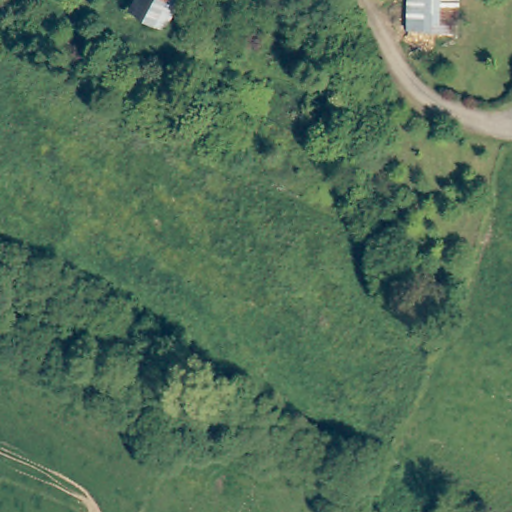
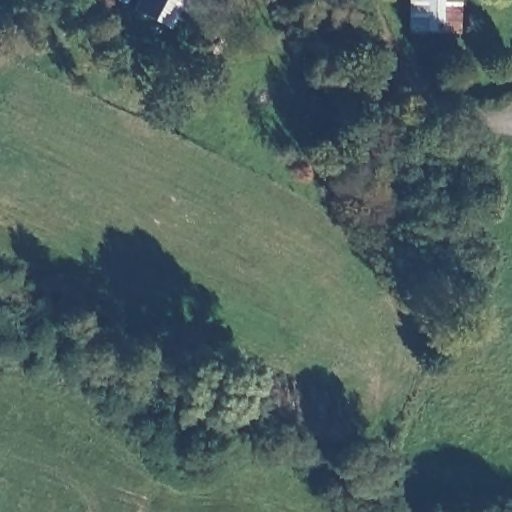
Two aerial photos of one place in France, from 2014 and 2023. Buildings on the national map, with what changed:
unchanged [(127,19),(136,0),(179,0),(161,37),(127,19)]
unchanged [(457,54),(407,52),(407,0),(457,0),(457,54)]

